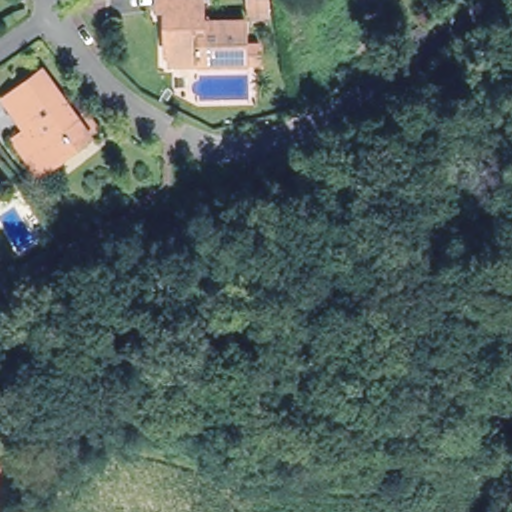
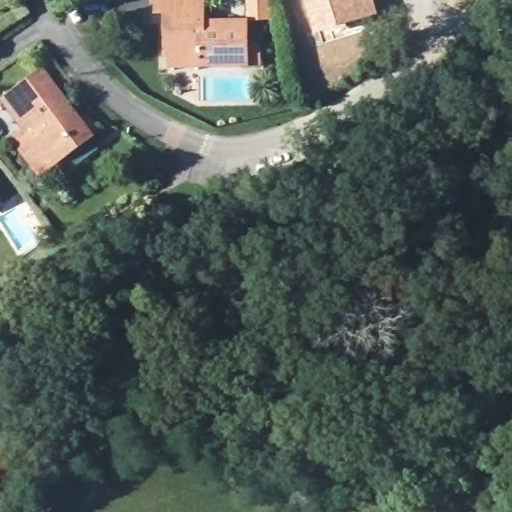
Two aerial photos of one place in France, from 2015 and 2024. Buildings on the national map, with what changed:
unchanged [(166,10),(157,10),(157,0),(201,0),(201,24),(245,23),(245,47),(258,47),(258,64),(245,64),(196,64),(167,65),(167,55),(166,10)]
new [(314,35),(304,0),(374,0),(378,16),(314,35)]
unchanged [(96,135),(40,180),(9,136),(20,128),(0,99),(0,94),(45,62),(96,135)]

